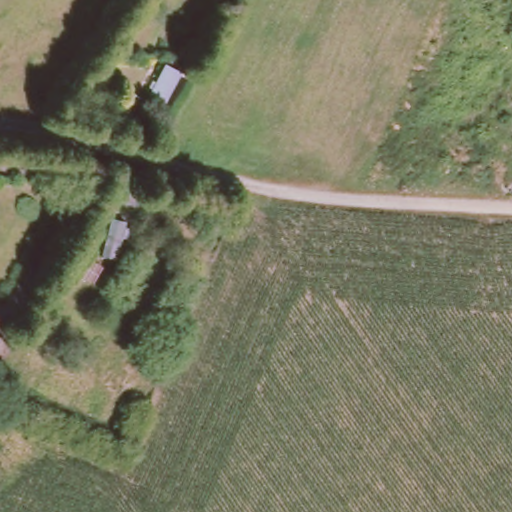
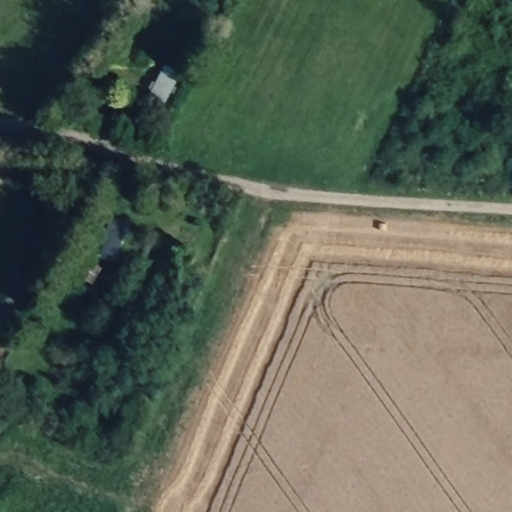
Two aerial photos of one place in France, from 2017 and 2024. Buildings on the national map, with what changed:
unchanged [(167,93),(152,85),(168,57),(182,65),(167,93)]
unchanged [(122,194),(129,171),(157,178),(152,202),(122,194)]
unchanged [(75,260),(85,245),(107,259),(98,274),(75,260)]

